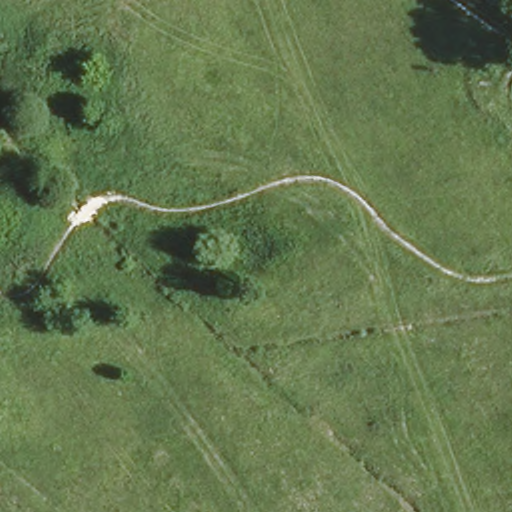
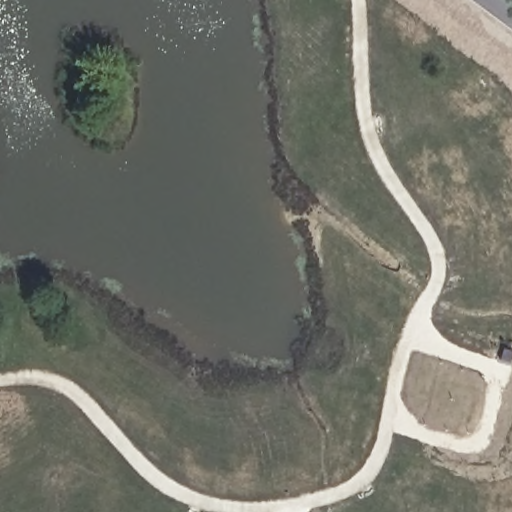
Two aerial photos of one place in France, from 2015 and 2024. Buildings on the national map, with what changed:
[]

